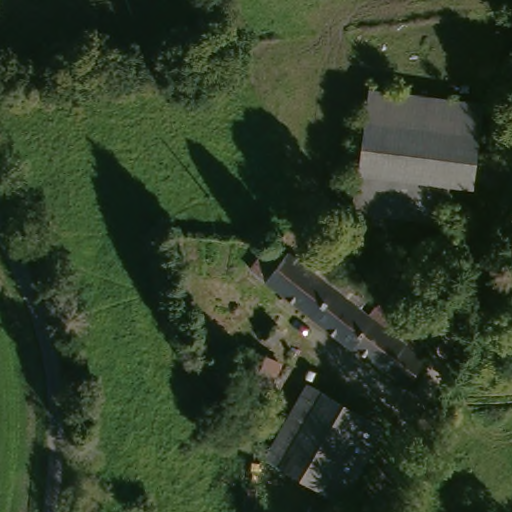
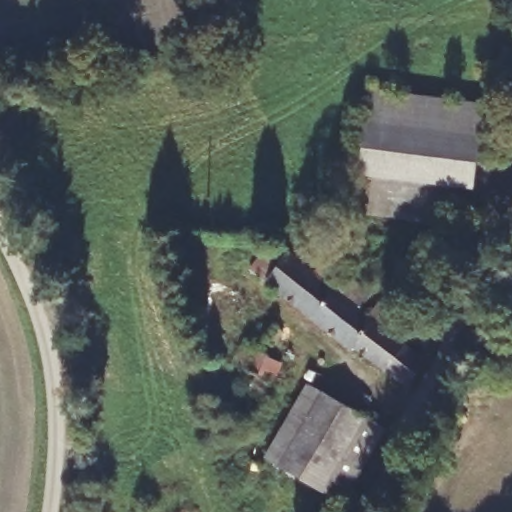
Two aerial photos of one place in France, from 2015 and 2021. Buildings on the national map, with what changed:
unchanged [(478,108),(474,191),(363,181),(371,95),(478,108)]
unchanged [(351,355),(348,359),(244,280),(268,251),(309,280),(322,265),(371,304),(358,320),(368,329),(418,364),(423,369),(404,398),(351,355)]
unchanged [(368,329),(381,312),(426,343),(418,364),(368,329)]
unchanged [(253,347),(263,334),(274,344),(266,357),(253,347)]
unchanged [(264,463),(306,391),(355,419),(316,492),(264,463)]
unchanged [(316,492),(355,419),(381,432),(341,505),(316,492)]

